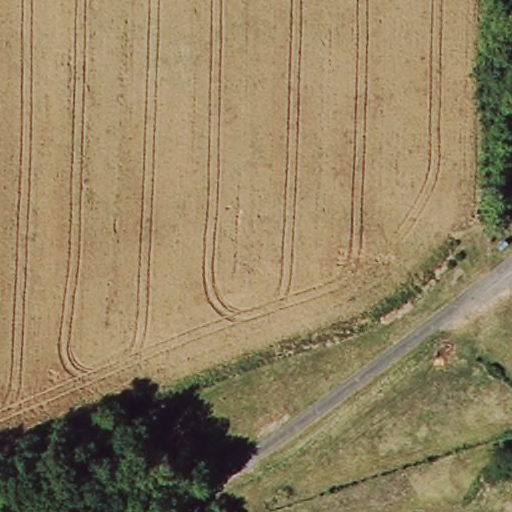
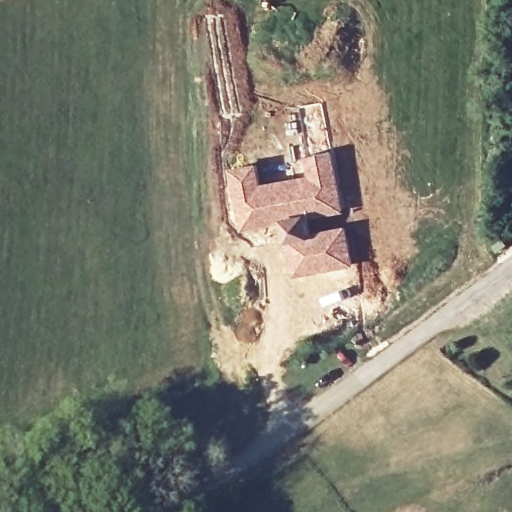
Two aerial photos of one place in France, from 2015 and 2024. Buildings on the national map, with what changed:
new [(257,162),(262,182),(304,174),(301,159),(332,151),(345,213),(312,219),(311,215),(280,223),(242,231),(231,167),(257,162)]
new [(311,215),(312,219),(314,230),(346,225),(353,268),(292,277),(280,223),(311,215)]

